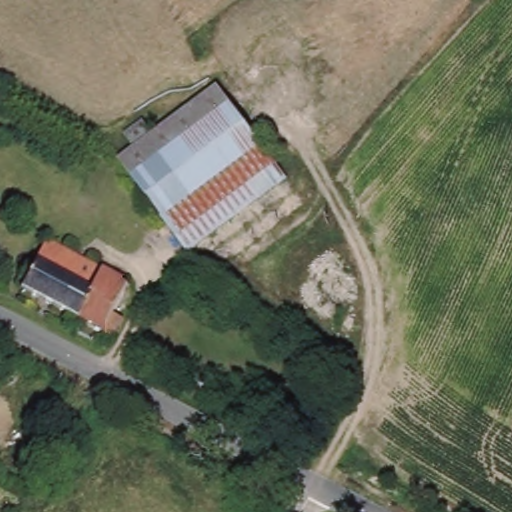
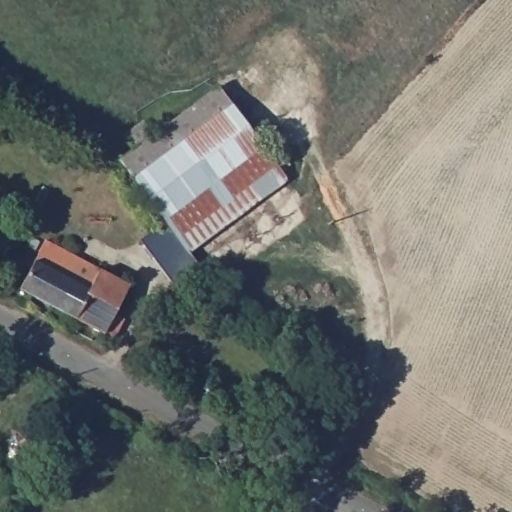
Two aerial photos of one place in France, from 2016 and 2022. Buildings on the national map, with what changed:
unchanged [(115,159),(134,146),(126,137),(147,120),(156,131),(218,86),(287,181),(187,254),(115,159)]
unchanged [(134,282),(121,308),(130,313),(118,334),(20,286),(46,238),(134,282)]

